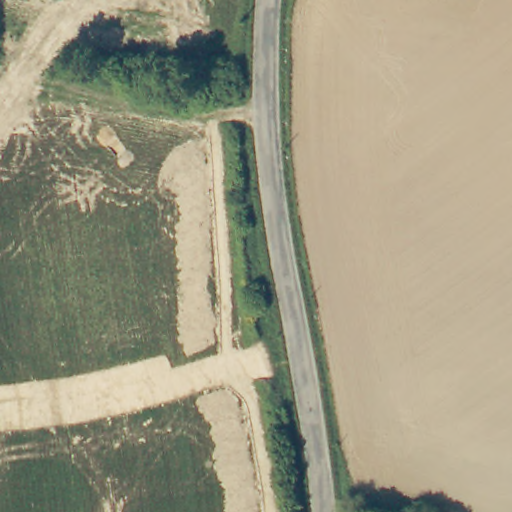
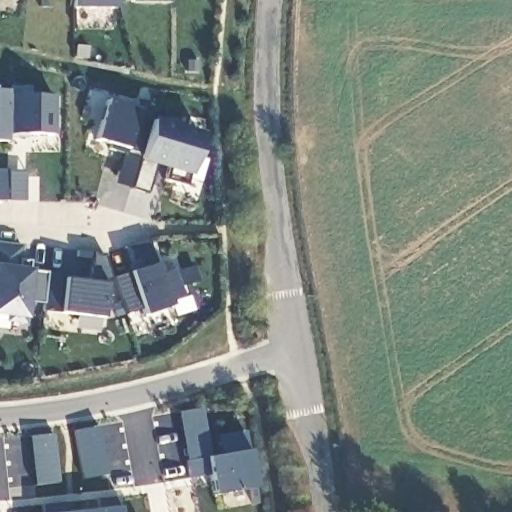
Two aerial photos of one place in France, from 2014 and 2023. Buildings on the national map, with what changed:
new [(73,0),(111,0),(111,8),(73,9),(73,0)]
new [(7,94),(54,95),(54,133),(6,132),(6,141),(0,140),(0,90),(7,90),(7,94)]
new [(185,186),(165,180),(169,171),(156,168),(146,192),(130,188),(140,162),(135,161),(137,152),(95,140),(107,100),(138,109),(137,103),(154,108),(153,118),(202,134),(185,186)]
new [(20,260),(27,261),(25,271),(87,277),(90,260),(75,258),(76,251),(101,254),(109,275),(131,267),(122,248),(146,240),(159,274),(172,270),(184,298),(141,315),(139,309),(124,313),(112,281),(105,280),(105,284),(102,318),(58,313),(59,306),(27,302),(25,324),(5,323),(9,318),(0,316),(0,243),(22,245),(20,260)]
new [(185,458),(177,410),(201,405),(210,454),(185,458)]
new [(98,425),(107,474),(82,478),(74,429),(98,425)]
new [(220,452),(217,433),(244,429),(257,500),(251,502),(249,486),(212,493),(209,472),(189,476),(185,458),(220,452)]
new [(59,480),(34,483),(28,434),(53,432),(59,480)]
new [(61,500),(62,511),(98,507),(97,496),(117,494),(120,512),(42,512),(41,503),(61,500)]

